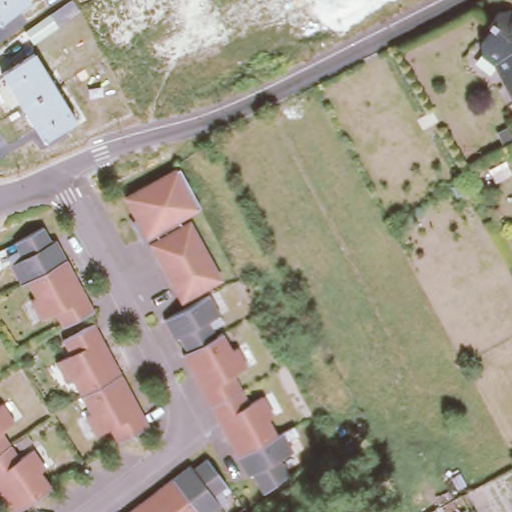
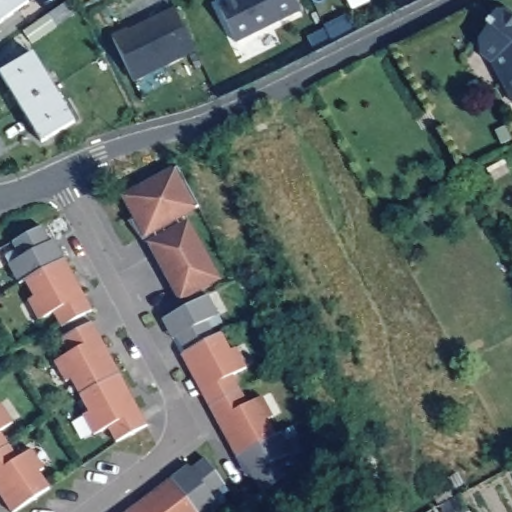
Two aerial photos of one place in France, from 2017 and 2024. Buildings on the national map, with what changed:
unchanged [(28,0),(0,21),(0,0),(28,0)]
new [(295,0),(301,11),(235,41),(220,5),(230,0),(295,0)]
new [(113,39),(176,9),(196,50),(135,81),(113,39)]
unchanged [(504,73),(478,52),(476,41),(487,28),(482,25),(493,11),(504,10),(512,16),(512,102),(501,82),(504,73)]
unchanged [(76,121),(43,142),(0,74),(0,73),(33,51),(76,121)]
demolished [(0,96),(8,109),(0,114),(0,96)]
demolished [(31,143),(0,163),(0,114),(8,109),(16,120),(31,143)]
unchanged [(175,170),(196,211),(146,238),(122,195),(175,170)]
unchanged [(195,220),(226,279),(181,303),(150,242),(195,220)]
unchanged [(20,248),(16,239),(43,226),(51,239),(57,236),(92,306),(63,321),(56,307),(42,314),(26,279),(21,281),(8,253),(20,248)]
unchanged [(213,292),(223,312),(210,319),(217,333),(225,330),(243,365),(233,371),(251,404),(261,397),(291,452),(281,460),(291,478),(265,493),(250,468),(243,465),(162,317),(213,292)]
unchanged [(69,353),(60,337),(95,320),(150,422),(120,438),(110,422),(100,428),(77,376),(69,380),(57,361),(69,353)]
unchanged [(13,420),(1,430),(20,457),(30,450),(52,482),(12,512),(0,493),(0,401),(13,420)]
unchanged [(190,464),(194,469),(208,458),(227,485),(222,490),(229,500),(213,512),(203,512),(202,511),(201,512),(127,512),(190,464)]
unchanged [(458,491),(469,512),(413,512),(458,491)]

